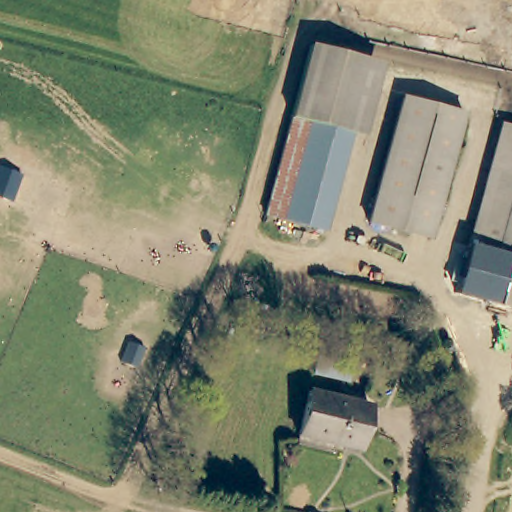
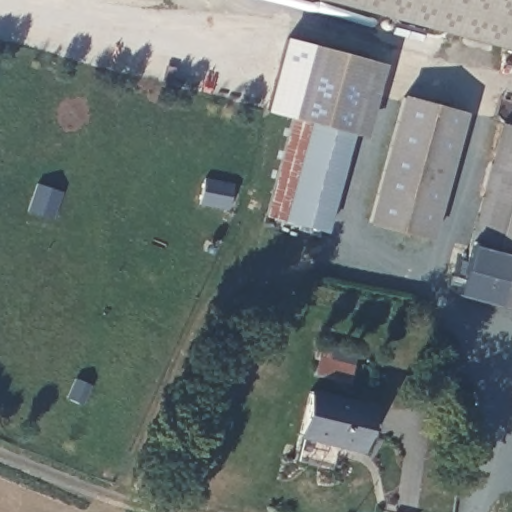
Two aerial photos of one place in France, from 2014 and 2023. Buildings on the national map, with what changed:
new [(512,50),(325,0),(512,0),(512,50)]
unchanged [(315,45),(375,61),(325,235),(268,219),(315,45)]
unchanged [(371,227),(406,98),(465,115),(429,244),(371,227)]
unchanged [(512,199),(496,249),(468,241),(490,168),(504,121),(512,123),(512,199)]
new [(227,210),(198,204),(204,177),(232,183),(227,210)]
new [(62,191),(52,219),(25,210),(36,182),(62,191)]
unchanged [(468,241),(496,249),(512,199),(512,307),(453,289),(468,241)]
unchanged [(308,395),(367,409),(358,452),(298,439),(308,395)]

